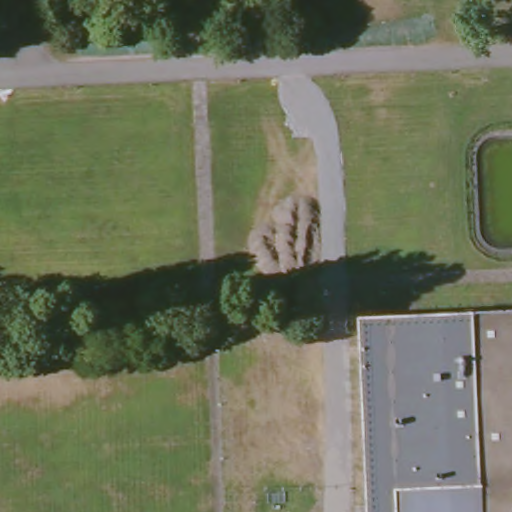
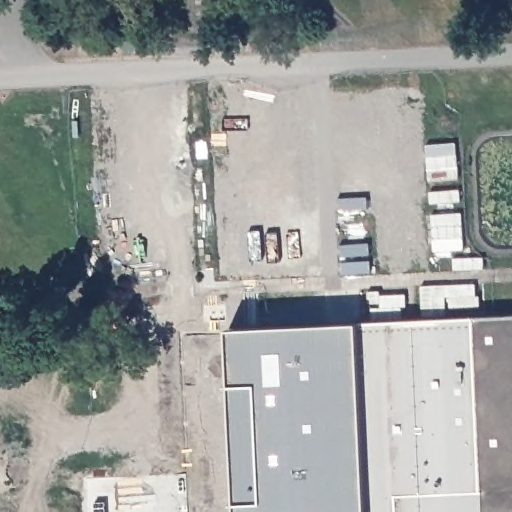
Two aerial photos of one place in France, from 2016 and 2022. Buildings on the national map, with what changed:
unchanged [(512,512),(367,512),(357,319),(512,311),(512,512)]
new [(231,512),(222,332),(352,328),(361,512),(231,512)]

